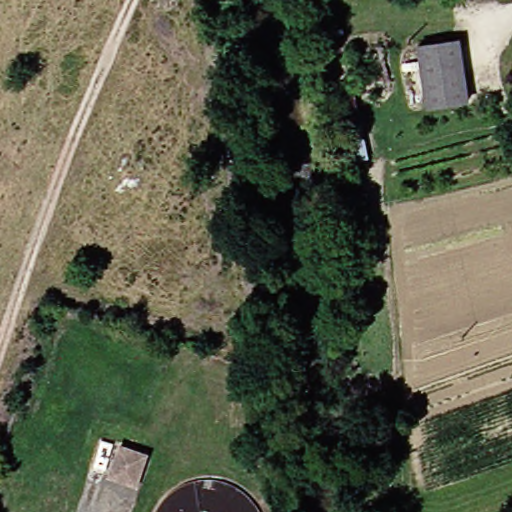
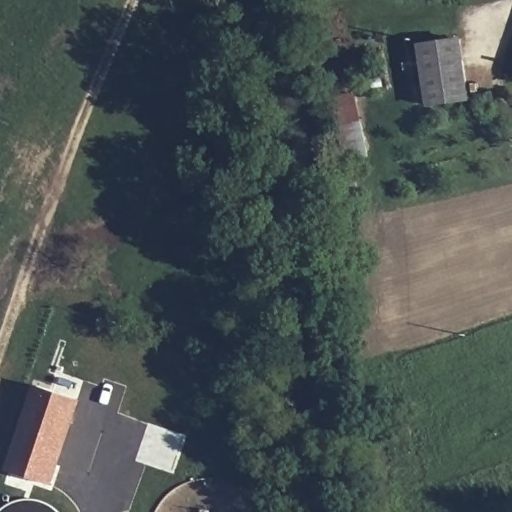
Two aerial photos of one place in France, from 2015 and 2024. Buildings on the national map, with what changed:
unchanged [(469,36),(478,95),(438,102),(429,42),(469,36)]
unchanged [(355,98),(369,164),(350,168),(337,102),(355,98)]
new [(33,384),(81,401),(53,486),(5,469),(33,384)]
unchanged [(150,459),(140,487),(112,477),(122,449),(150,459)]

